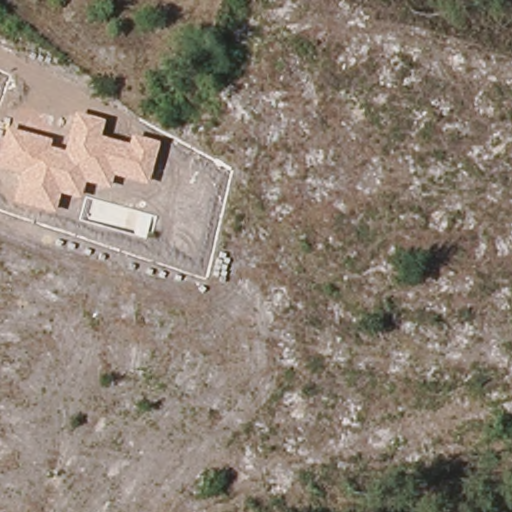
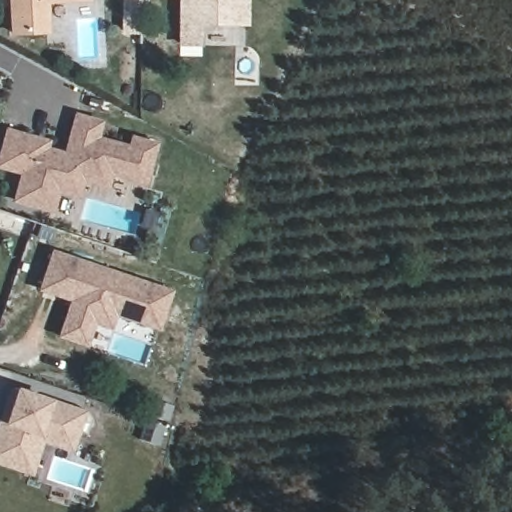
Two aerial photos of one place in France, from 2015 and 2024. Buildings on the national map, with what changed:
new [(89,1),(46,3),(47,33),(7,35),(5,0),(88,0),(89,1)]
new [(224,21),(192,20),(192,44),(175,44),(175,0),(239,0),(239,21),(224,21)]
unchanged [(63,151),(74,113),(102,119),(99,137),(128,144),(130,136),(157,142),(147,184),(112,176),(109,189),(84,183),(80,199),(58,194),(52,213),(11,202),(19,174),(0,169),(0,145),(5,128),(50,139),(48,148),(63,151)]
new [(38,290),(52,249),(173,291),(159,331),(115,318),(112,329),(95,324),(87,346),(57,337),(70,301),(38,290)]
new [(78,435),(65,431),(62,437),(40,428),(26,472),(0,462),(0,426),(12,390),(82,411),(78,435)]

